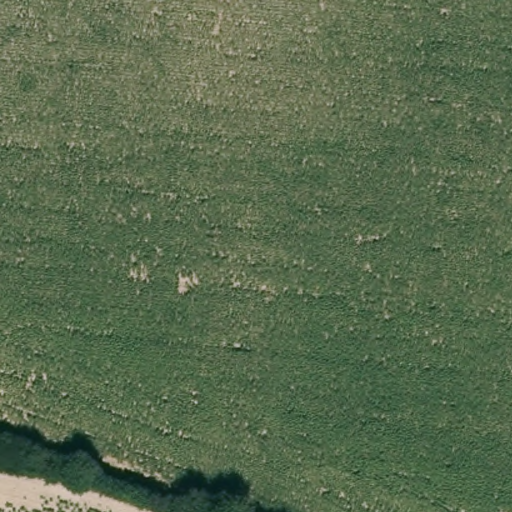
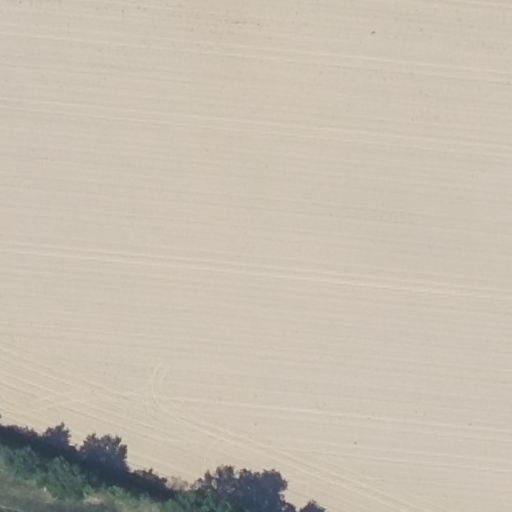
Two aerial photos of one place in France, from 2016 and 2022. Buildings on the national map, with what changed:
[]

